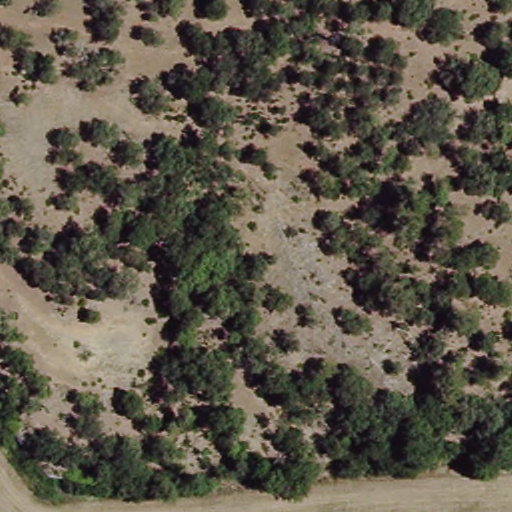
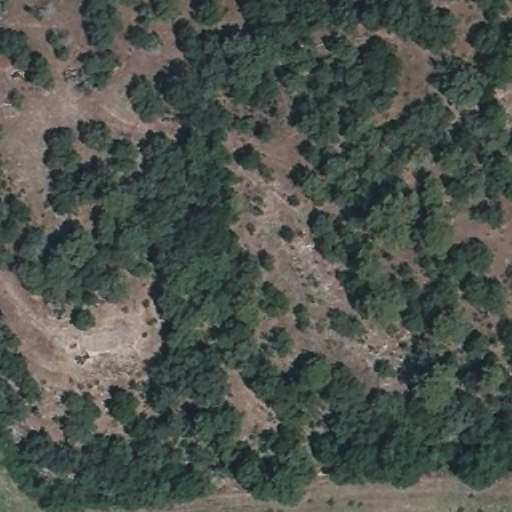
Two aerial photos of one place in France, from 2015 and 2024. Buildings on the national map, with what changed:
[]

